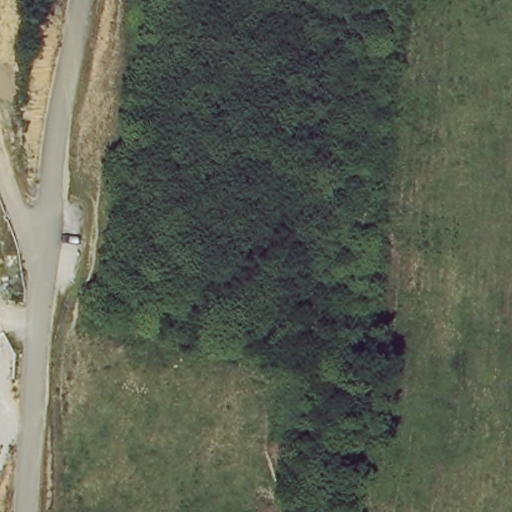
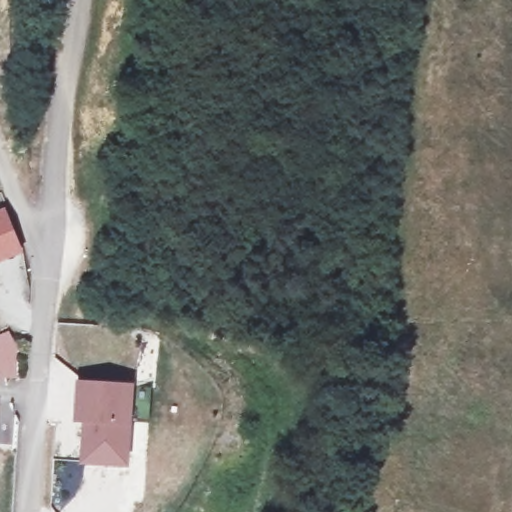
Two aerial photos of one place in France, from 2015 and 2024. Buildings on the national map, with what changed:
new [(122,462),(80,457),(85,417),(76,416),(80,380),(131,386),(122,462)]
new [(147,422),(127,420),(131,386),(150,388),(147,422)]

